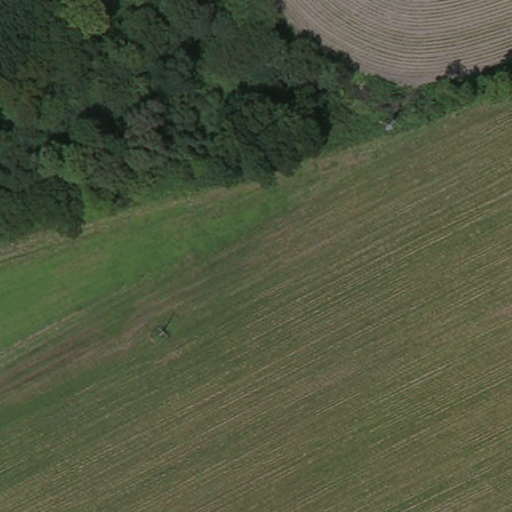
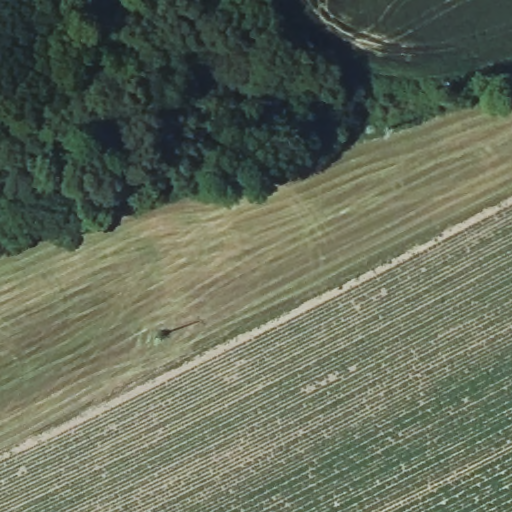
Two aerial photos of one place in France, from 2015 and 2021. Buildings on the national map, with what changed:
[]

